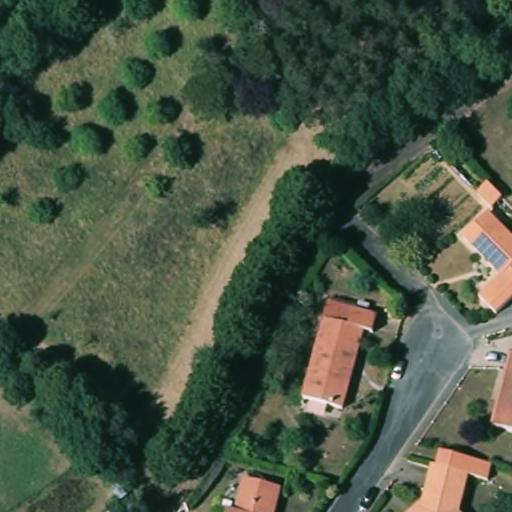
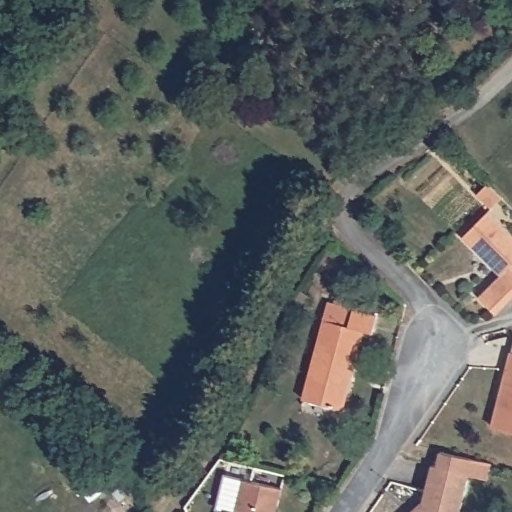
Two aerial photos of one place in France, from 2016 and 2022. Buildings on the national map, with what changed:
unchanged [(487,210),(494,203),(510,219),(502,226),(487,210)]
unchanged [(493,313),(476,296),(498,274),(460,236),(483,213),(512,241),(512,294),(493,313)]
unchanged [(375,331),(366,329),(343,406),(305,395),(332,301),(379,314),(375,331)]
unchanged [(512,347),(512,429),(494,424),(501,396),(504,384),(512,347)]
unchanged [(421,504),(431,466),(435,467),(439,450),(462,456),(490,463),(486,481),(466,476),(458,512),(413,512),(421,504)]
unchanged [(276,512),(227,512),(229,508),(235,510),(246,477),(283,488),(276,512)]

